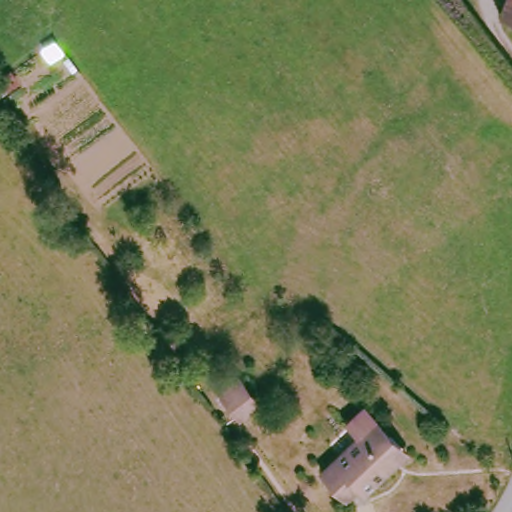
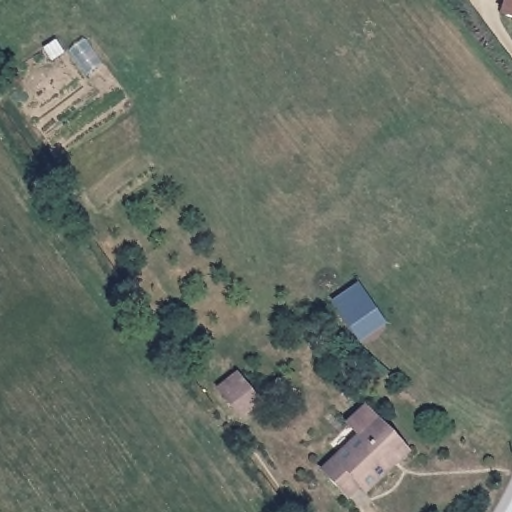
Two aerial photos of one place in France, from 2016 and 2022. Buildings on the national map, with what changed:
unchanged [(504,10),(507,0),(512,0),(512,13),(504,10)]
new [(359,285),(386,322),(359,342),(332,303),(359,285)]
unchanged [(237,419),(222,396),(217,388),(238,373),(244,381),(259,403),(237,419)]
unchanged [(355,433),(344,422),(362,405),(404,450),(365,487),(359,481),(345,495),(320,467),(355,433)]

